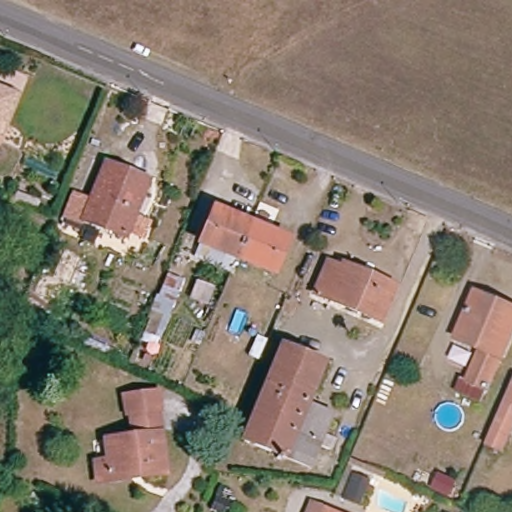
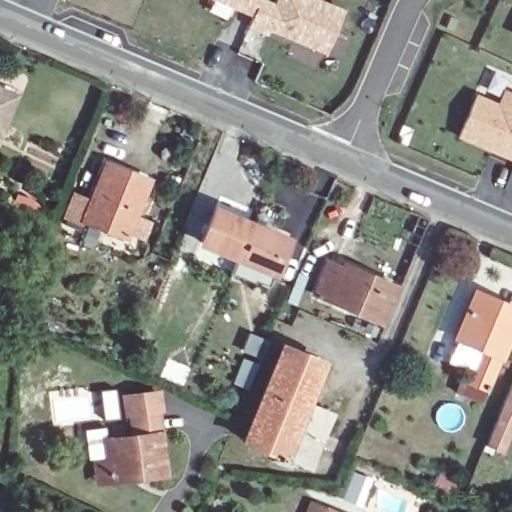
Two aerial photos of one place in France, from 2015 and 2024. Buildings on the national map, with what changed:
new [(276,0),(323,0),(344,9),(326,55),(268,31),(267,36),(247,28),(253,15),(215,0),(270,0),(275,2),(276,0)]
new [(474,93),(497,103),(503,89),(512,93),(512,162),(456,137),(474,93)]
unchanged [(16,97),(13,101),(0,134),(0,91),(16,97)]
unchanged [(85,220),(107,164),(129,172),(150,181),(148,187),(126,237),(85,220)]
unchanged [(238,260),(201,244),(215,210),(252,225),(238,260)]
unchanged [(288,240),(274,275),(238,260),(252,225),(288,240)]
unchanged [(344,265),(396,287),(380,322),(316,295),(329,263),(342,268),(344,265)]
unchanged [(512,337),(481,409),(456,397),(461,385),(466,387),(479,355),(456,345),(476,297),(512,314),(512,337)]
unchanged [(327,451),(314,446),(305,469),(240,442),(278,347),(318,363),(302,405),(326,415),(319,435),(332,440),(327,451)]
unchanged [(494,428),(512,386),(512,427),(509,435),(503,450),(487,443),(494,428)]
unchanged [(99,464),(111,462),(109,442),(136,439),(134,419),(131,395),(158,392),(161,416),(169,475),(148,478),(101,483),(99,464)]
unchanged [(458,489),(453,500),(413,482),(418,471),(458,489)]
unchanged [(331,512),(311,512),(314,505),(331,512)]

